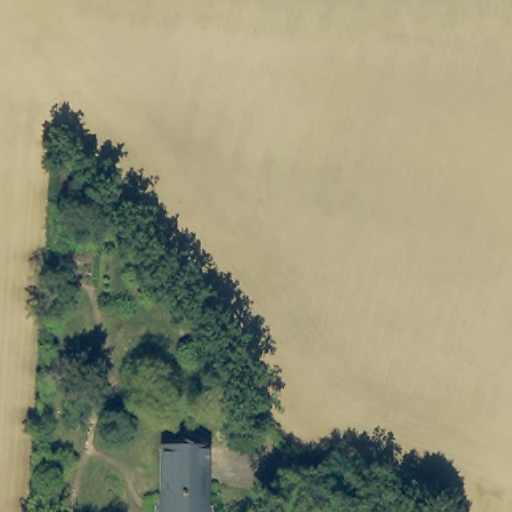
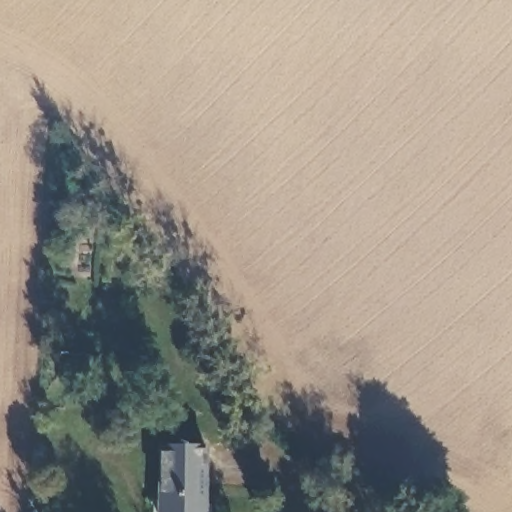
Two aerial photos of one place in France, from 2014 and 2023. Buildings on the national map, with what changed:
unchanged [(211,448),(210,512),(163,512),(166,448),(211,448)]

